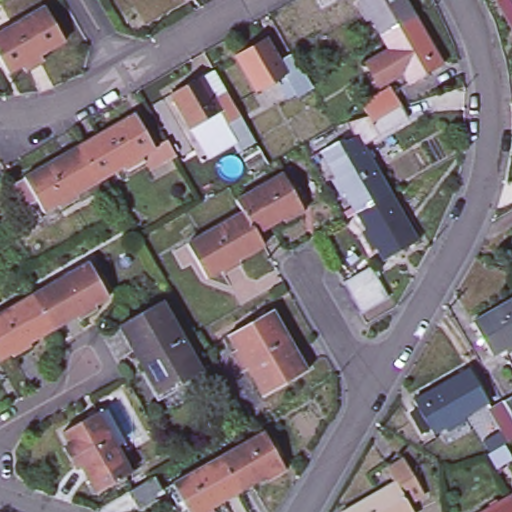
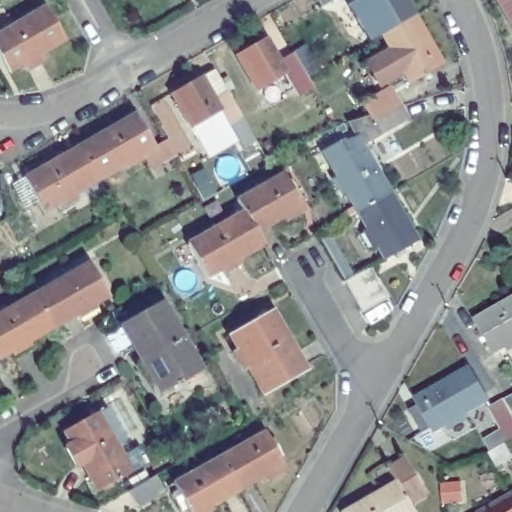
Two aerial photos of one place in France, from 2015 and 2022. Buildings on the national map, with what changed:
unchanged [(319,0),(330,0),(322,4),(319,0)]
unchanged [(386,31),(383,32),(365,0),(409,0),(416,13),(386,31)]
unchanged [(494,0),(512,0),(512,34),(493,0),(494,0)]
unchanged [(48,11),(67,44),(42,58),(44,63),(27,74),(24,69),(11,76),(0,56),(0,39),(48,11)]
unchanged [(370,59),(391,46),(383,32),(386,31),(416,13),(446,64),(413,82),(405,69),(384,82),(370,59)]
unchanged [(294,53),(307,76),(315,91),(302,99),(287,73),(259,89),(240,54),(267,37),(280,61),(294,53)]
unchanged [(220,127),(200,137),(195,126),(173,92),(202,75),(216,99),(229,91),(237,106),(240,111),(228,118),(222,109),(216,113),(221,120),(220,127)]
unchanged [(329,158),(323,147),(342,136),(344,140),(361,130),(356,122),(373,112),(366,100),(393,85),(404,103),(412,116),(385,132),(383,130),(365,141),(392,190),(379,197),(357,209),(328,159),(329,158)]
unchanged [(100,177),(81,145),(138,112),(157,145),(100,177)]
unchanged [(12,181),(25,175),(32,172),(81,145),(100,177),(78,190),(80,195),(62,206),(60,200),(43,209),(32,189),(20,195),(12,181)]
unchanged [(253,216),(250,208),(242,197),(288,170),(311,209),(290,222),(288,217),(262,231),(253,216)]
unchanged [(357,209),(379,197),(392,190),(420,238),(385,258),(357,209)]
unchanged [(243,255),(247,262),(226,273),(224,268),(212,275),(193,241),(250,208),(253,216),(262,231),(268,241),(243,255)]
unchanged [(96,307),(98,312),(81,323),(79,317),(55,331),(35,298),(90,266),(110,299),(96,307)]
unchanged [(372,266),(390,297),(363,312),(345,282),(372,266)]
unchanged [(35,298),(55,331),(31,345),(34,350),(15,361),(12,355),(0,362),(0,319),(35,298)]
unchanged [(512,347),(493,357),(475,324),(512,304),(512,347)]
unchanged [(163,305),(202,374),(161,397),(123,329),(163,305)]
unchanged [(295,349),(308,371),(265,396),(248,368),(242,371),(231,353),(238,350),(230,337),(268,314),(290,351),(295,349)]
unchanged [(436,435),(418,403),(471,371),(490,404),(436,435)]
unchanged [(512,399),(512,443),(510,444),(490,412),(505,403),(512,399)]
unchanged [(97,412),(132,474),(99,492),(64,431),(97,412)]
unchanged [(267,484),(264,478),(238,492),(221,460),(267,435),(288,472),(267,484)]
unchanged [(500,451),(508,466),(498,472),(490,458),(500,451)]
unchanged [(397,481),(390,468),(403,460),(414,453),(425,470),(415,476),(427,495),(411,505),(415,512),(344,512),(397,481)]
unchanged [(212,506),(215,512),(189,512),(175,486),(221,460),(238,492),(212,506)]
unchanged [(154,479),(163,494),(137,508),(129,493),(154,479)]
unchanged [(512,497),(512,512),(486,512),(512,497)]

